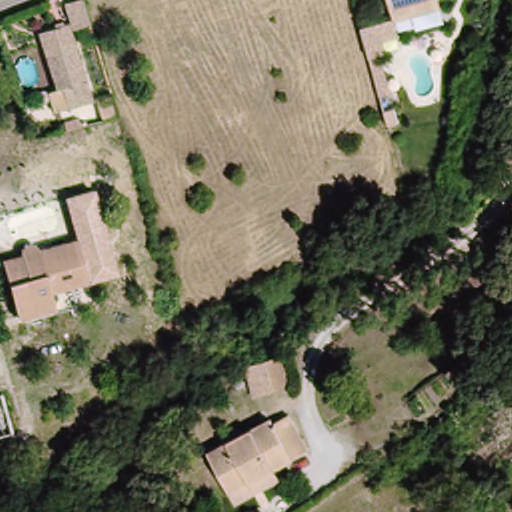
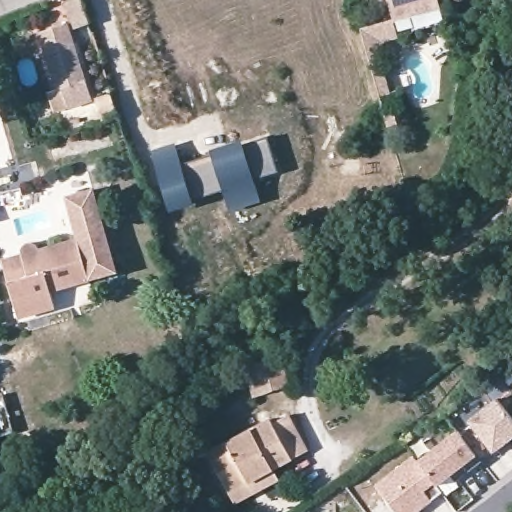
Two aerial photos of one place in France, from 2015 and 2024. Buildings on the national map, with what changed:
unchanged [(89,24),(72,29),(65,4),(78,0),(82,0),(89,24)]
unchanged [(394,20),(388,0),(439,0),(441,6),(411,15),(394,20)]
unchanged [(47,91),(57,88),(40,32),(69,23),(92,100),(70,107),(54,112),(47,91)]
unchanged [(96,97),(110,92),(118,115),(103,120),(96,97)]
new [(150,150),(174,143),(181,164),(211,155),(210,150),(241,140),(242,145),(267,138),(278,172),(254,180),(262,201),(230,212),(224,191),(192,201),(194,205),(170,212),(150,150)]
unchanged [(78,237),(66,195),(97,187),(117,277),(89,282),(78,237)]
unchanged [(51,291),(55,310),(18,319),(6,267),(3,257),(22,253),(21,250),(21,248),(22,246),(23,245),(25,244),(27,243),(28,242),(30,242),(31,243),(33,243),(34,244),(35,245),(37,247),(78,237),(89,282),(51,291)]
unchanged [(292,385),(273,390),(265,360),(285,355),(292,385)]
unchanged [(0,436),(0,395),(5,393),(15,433),(0,436)]
new [(470,420),(497,398),(512,417),(512,438),(482,460),(462,435),(475,426),(470,420)]
unchanged [(230,492),(209,453),(270,420),(272,423),(288,415),(307,450),(273,468),(280,480),(236,503),(230,492)]
new [(458,430),(462,435),(482,460),(470,470),(464,463),(437,485),(419,460),(458,430)]
new [(419,460),(437,485),(442,491),(416,512),(397,512),(376,485),(415,455),(419,460)]

